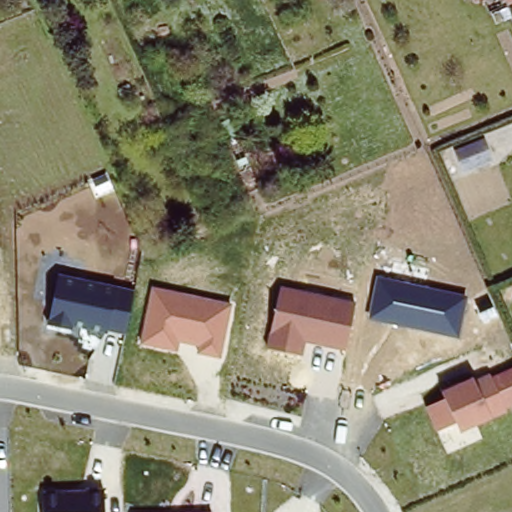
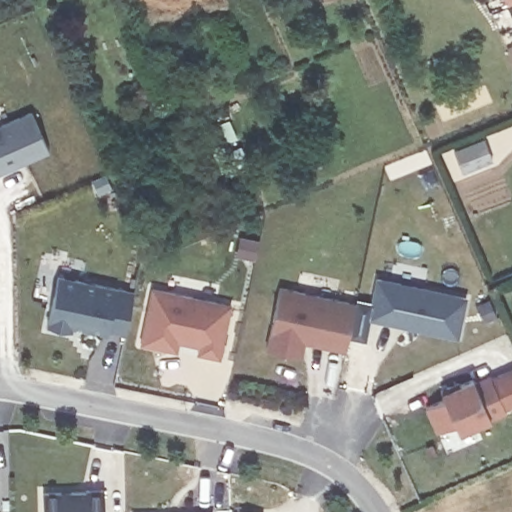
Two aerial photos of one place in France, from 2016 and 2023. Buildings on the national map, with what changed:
new [(506,4),(504,0),(512,0),(512,1),(506,4)]
new [(48,151),(0,171),(0,125),(31,112),(48,151)]
unchanged [(451,151),(459,147),(482,139),(489,158),(468,166),(458,170),(451,151)]
unchanged [(134,291),(125,335),(108,330),(106,335),(74,326),(72,331),(48,324),(59,274),(134,291)]
unchanged [(467,297),(458,339),(368,320),(376,277),(467,297)]
unchanged [(355,303),(344,350),(306,342),(303,356),(268,348),(281,286),(355,303)]
unchanged [(232,305),(221,358),(197,354),(198,346),(179,342),(177,351),(141,343),(152,287),(232,305)]
unchanged [(506,409),(491,377),(512,369),(512,406),(506,409)]
unchanged [(507,411),(491,420),(459,435),(453,422),(437,430),(427,409),(445,398),(442,391),(473,378),(489,373),(507,411)]
unchanged [(86,492),(87,489),(103,490),(104,512),(44,512),(43,492),(86,492)]

